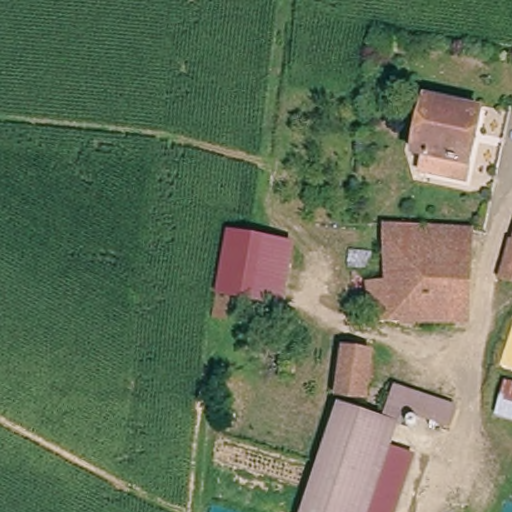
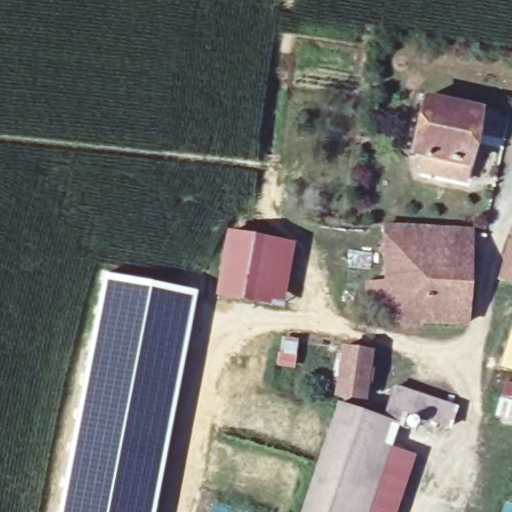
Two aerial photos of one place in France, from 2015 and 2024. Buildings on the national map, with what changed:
unchanged [(466,169),(460,167),(457,184),(418,176),(422,160),(408,157),(421,98),(478,110),(466,169)]
unchanged [(462,322),(360,317),(362,276),(384,277),(390,224),(471,231),(462,322)]
unchanged [(262,305),(228,300),(213,295),(224,233),(273,240),(262,305)]
unchanged [(497,285),(508,239),(512,239),(512,288),(497,285)]
new [(197,291),(154,512),(59,512),(103,273),(197,291)]
new [(280,336),(299,338),(294,370),(275,366),(280,336)]
unchanged [(341,337),(371,343),(362,400),(330,396),(331,388),(341,337)]
unchanged [(455,409),(448,428),(434,423),(385,404),(393,385),(445,405),(455,409)]
unchanged [(501,413),(507,385),(512,385),(512,415),(501,413)]
new [(380,430),(383,431),(386,421),(379,419),(385,404),(410,414),(403,428),(398,426),(390,447),(416,455),(397,512),(353,512),(369,462),(380,430)]
unchanged [(359,412),(386,421),(383,431),(380,430),(353,512),(304,512),(341,406),(359,412)]

